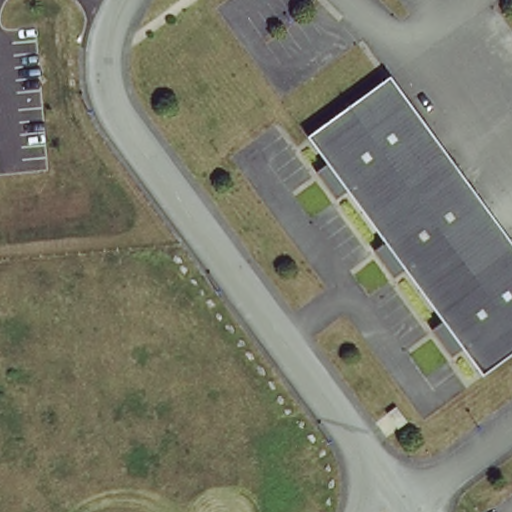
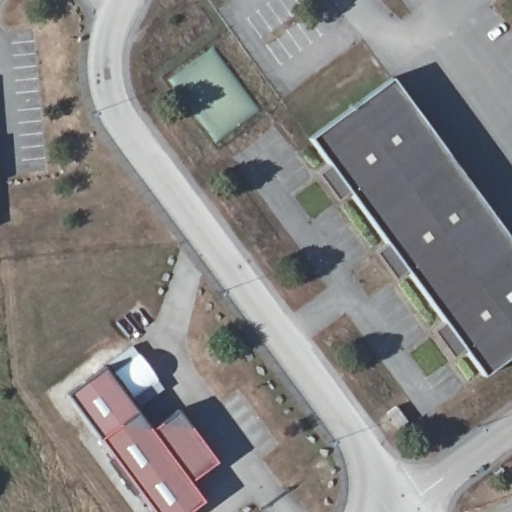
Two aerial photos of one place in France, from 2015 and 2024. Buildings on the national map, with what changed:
unchanged [(484,379),(464,352),(452,361),(432,333),(444,325),(406,274),(394,282),(374,255),(386,246),(348,195),(337,204),(316,176),(328,167),(308,141),(391,80),(512,245),(512,358),(484,379)]
new [(135,411),(99,438),(65,396),(102,369),(135,411)]
new [(112,457),(99,438),(137,410),(150,428),(178,409),(217,463),(189,482),(203,501),(187,512),(153,512),(138,491),(132,496),(107,461),(112,457)]
demolished [(418,439),(409,446),(398,430),(406,424),(418,439)]

